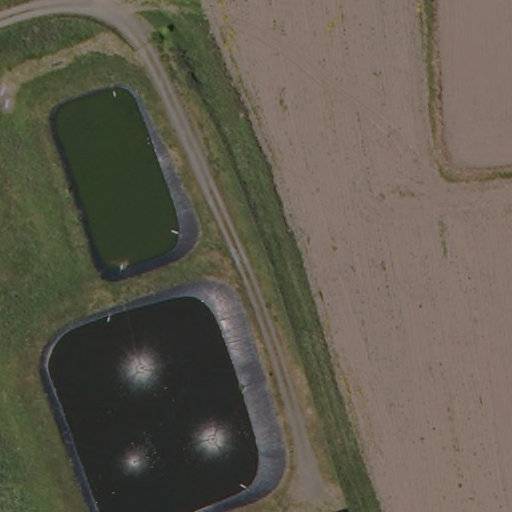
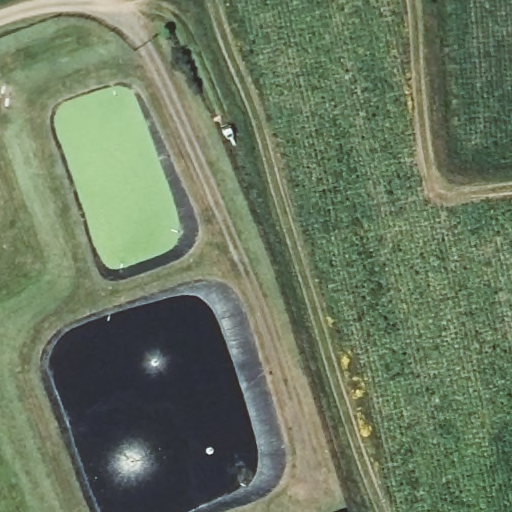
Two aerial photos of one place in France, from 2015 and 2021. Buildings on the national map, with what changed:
unchanged [(347,509),(347,512),(338,512),(347,509)]

